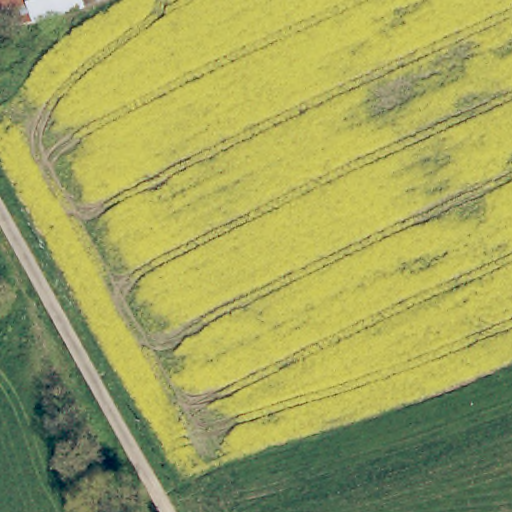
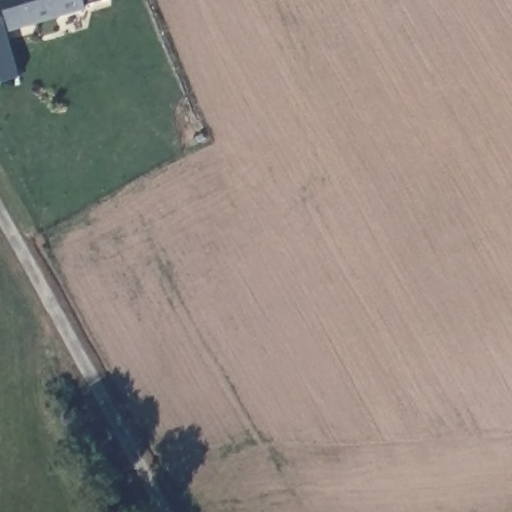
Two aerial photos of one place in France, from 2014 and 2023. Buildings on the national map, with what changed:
unchanged [(0,0),(38,0),(43,21),(0,32),(0,0)]
unchanged [(93,9),(43,21),(38,0),(117,0),(118,2),(93,9)]
new [(0,32),(8,30),(20,75),(0,84),(0,32)]

